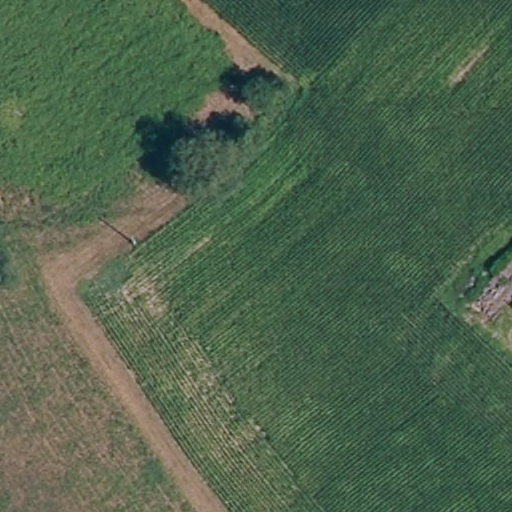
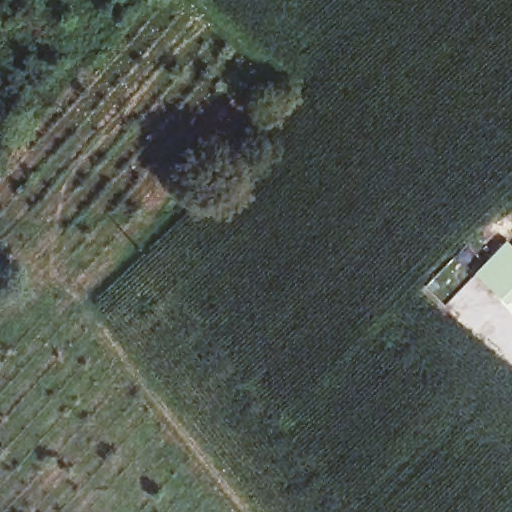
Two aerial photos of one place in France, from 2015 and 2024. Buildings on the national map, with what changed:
new [(506,239),(512,245),(512,286),(499,299),(473,273),(506,239)]

